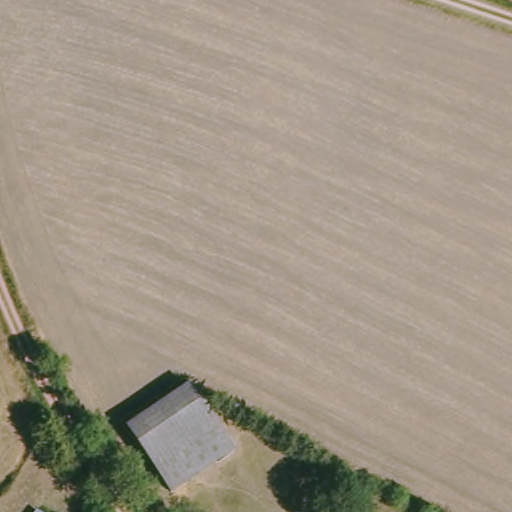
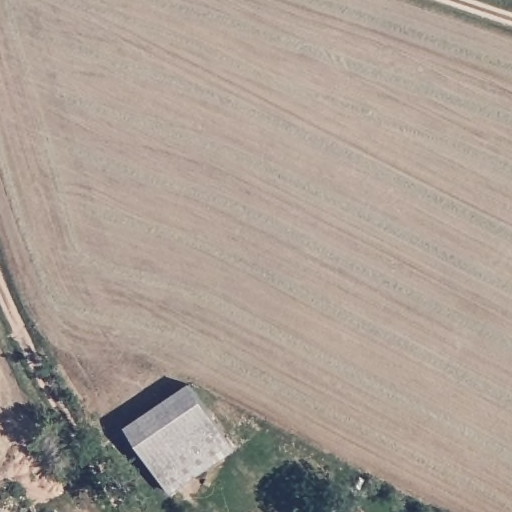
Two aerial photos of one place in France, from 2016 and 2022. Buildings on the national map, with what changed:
unchanged [(233,450),(171,491),(127,427),(190,384),(233,450)]
unchanged [(362,512),(347,512),(352,506),(362,512)]

